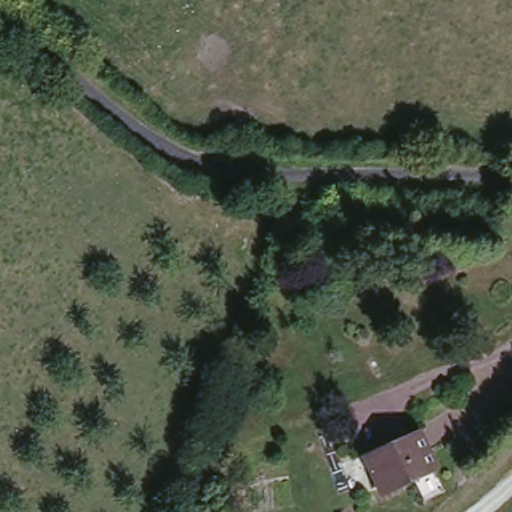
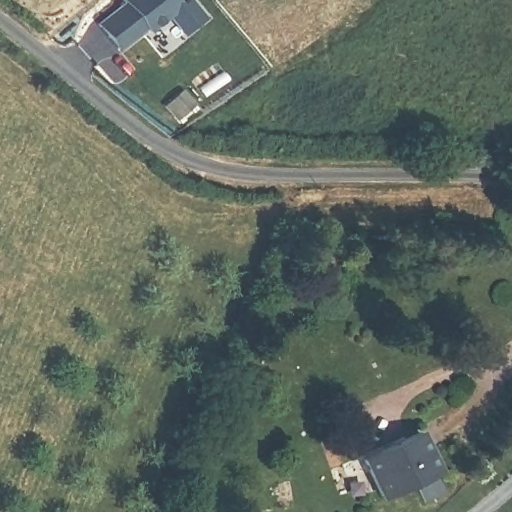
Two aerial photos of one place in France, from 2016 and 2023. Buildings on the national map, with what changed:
new [(124,0),(181,0),(182,2),(184,0),(193,0),(204,14),(184,32),(168,14),(150,31),(148,26),(121,48),(103,26),(129,5),(124,0)]
unchanged [(423,427),(444,467),(385,496),(368,457),(423,427)]

